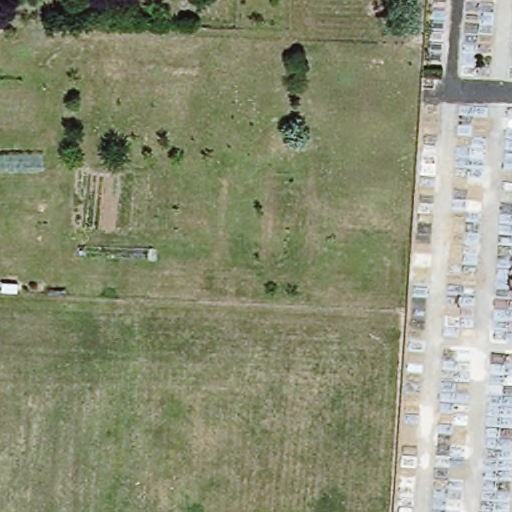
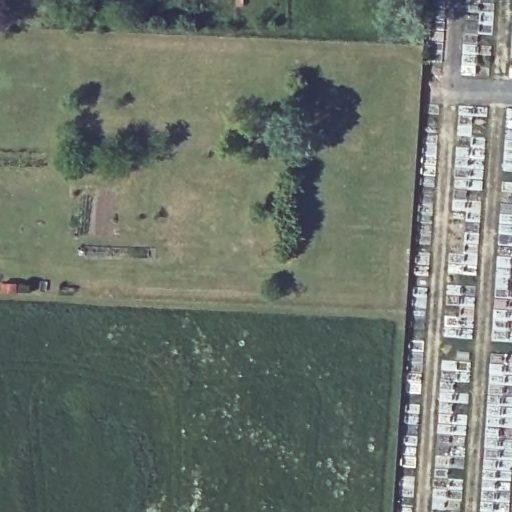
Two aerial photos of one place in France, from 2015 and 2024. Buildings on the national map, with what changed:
[]

